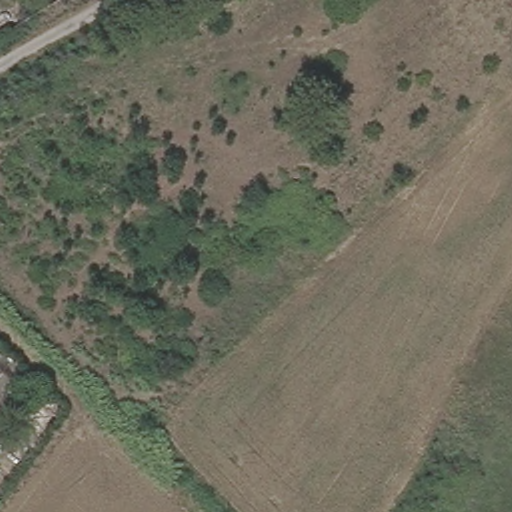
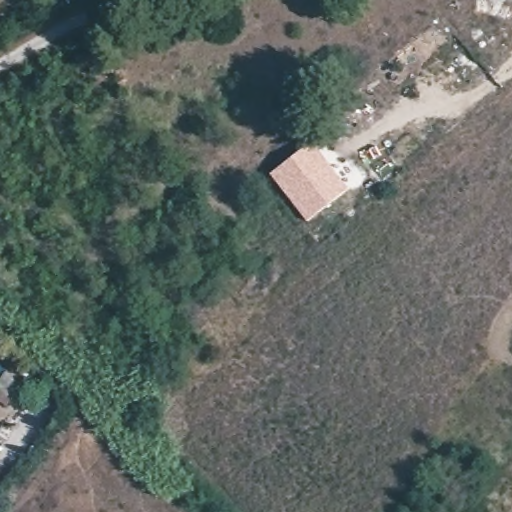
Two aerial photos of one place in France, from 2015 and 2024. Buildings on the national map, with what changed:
new [(309,141),(348,189),(306,222),(268,174),(309,141)]
unchanged [(6,366),(23,383),(4,402),(0,397),(0,370),(1,372),(6,366)]

